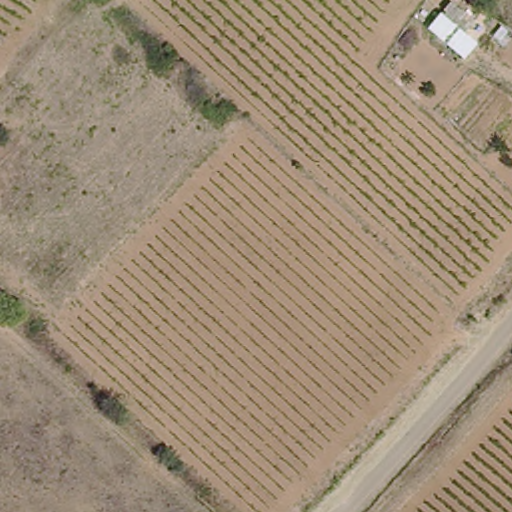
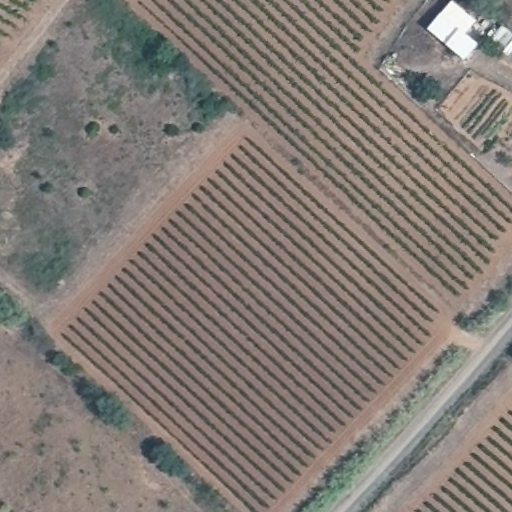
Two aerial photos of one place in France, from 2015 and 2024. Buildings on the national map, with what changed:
unchanged [(469,0),(485,13),(471,36),(437,15),(447,0),(469,0)]

